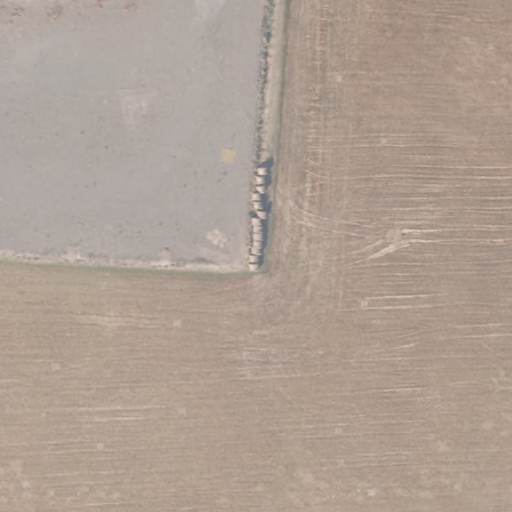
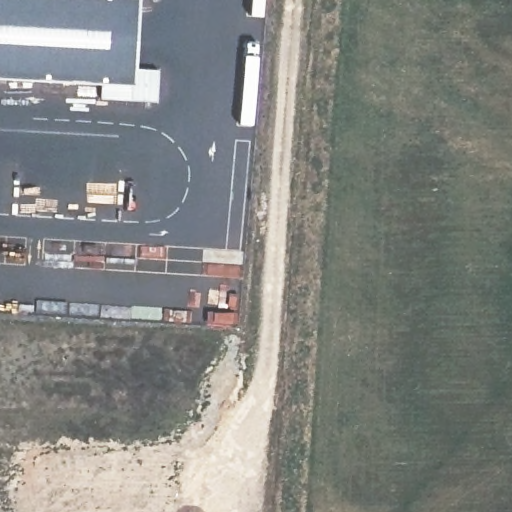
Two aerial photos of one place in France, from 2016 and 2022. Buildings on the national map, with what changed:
new [(130,67),(158,68),(155,101),(97,97),(95,80),(0,75),(0,0),(134,0),(130,67)]

